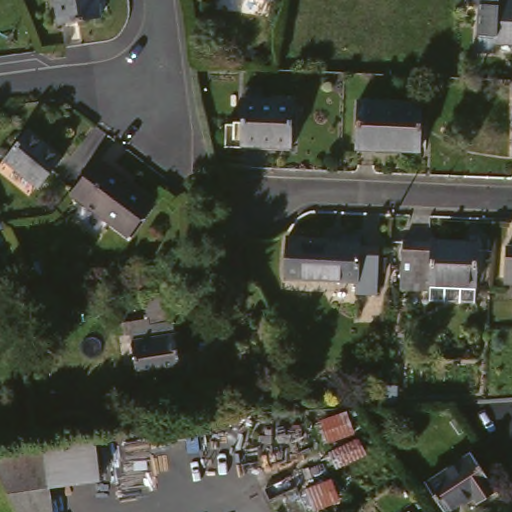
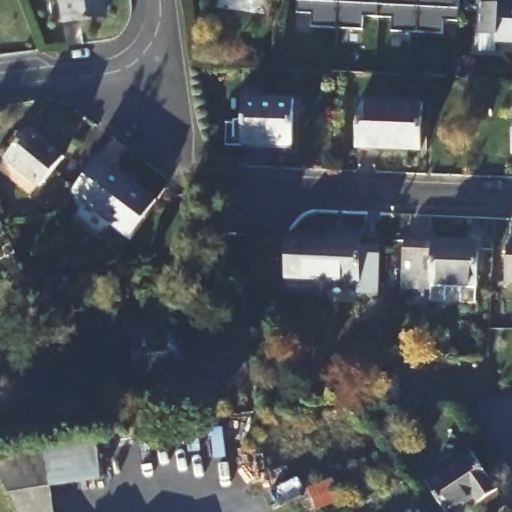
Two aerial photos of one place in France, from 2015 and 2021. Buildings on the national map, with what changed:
unchanged [(102,16),(60,22),(56,0),(99,0),(102,16)]
new [(457,10),(457,20),(442,19),(442,32),(391,29),(392,16),(362,15),(361,29),(311,26),(311,13),(297,12),(298,0),(458,0),(457,10)]
unchanged [(496,40),(478,39),(479,9),(472,8),(472,0),(501,0),(501,4),(512,5),(512,47),(496,47),(496,40)]
unchanged [(249,97),(300,99),(298,146),(247,144),(249,97)]
unchanged [(367,99),(427,102),(425,149),(364,148),(367,99)]
unchanged [(39,130),(74,158),(49,188),(15,159),(39,130)]
unchanged [(135,243),(77,200),(105,163),(118,173),(140,189),(162,206),(135,243)]
unchanged [(280,232),(334,234),(334,230),(352,232),(352,240),(371,240),(368,288),(349,287),(349,276),(277,272),(280,232)]
unchanged [(456,302),(435,302),(435,294),(407,293),(410,245),(439,246),(440,245),(483,247),(481,290),(481,302),(456,302)]
unchanged [(512,283),(511,282),(512,263),(512,283)]
unchanged [(129,322),(135,321),(155,319),(150,294),(164,292),(162,277),(172,276),(185,355),(190,354),(192,373),(184,375),(183,370),(145,377),(137,335),(131,335),(129,322)]
unchanged [(387,383),(402,385),(401,405),(386,406),(387,383)]
unchanged [(79,417),(120,411),(122,423),(82,429),(79,417)]
unchanged [(54,443),(59,442),(101,436),(107,480),(57,487),(60,512),(24,512),(0,468),(0,451),(48,443),(54,443)]
unchanged [(498,491),(478,505),(473,497),(451,512),(447,512),(427,483),(472,453),(498,491)]

